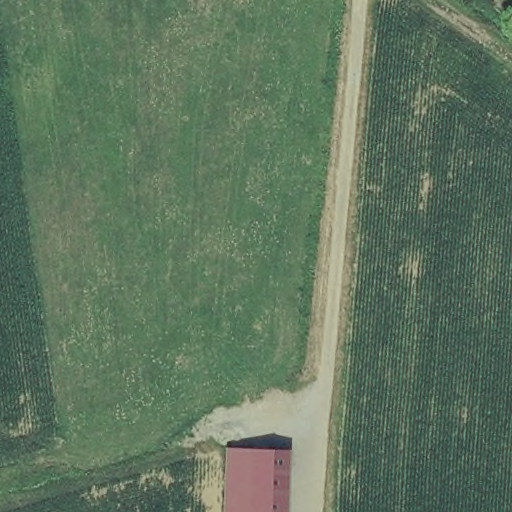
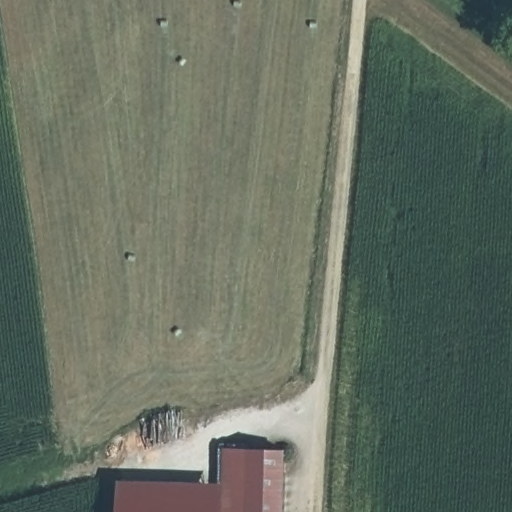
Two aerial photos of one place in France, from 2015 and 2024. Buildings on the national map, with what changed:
unchanged [(227,449),(290,450),(288,512),(226,512),(227,449)]
new [(221,486),(220,512),(115,512),(116,484),(221,486)]

